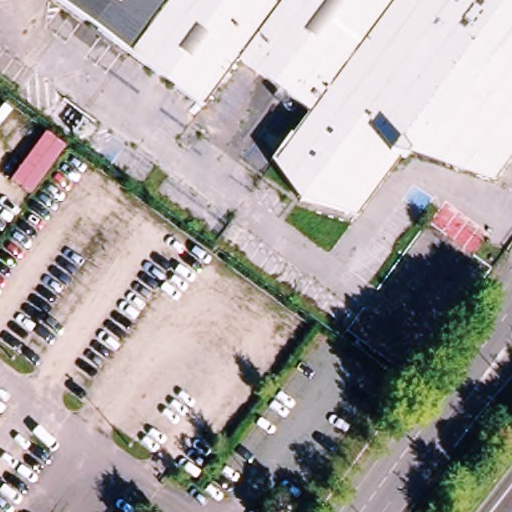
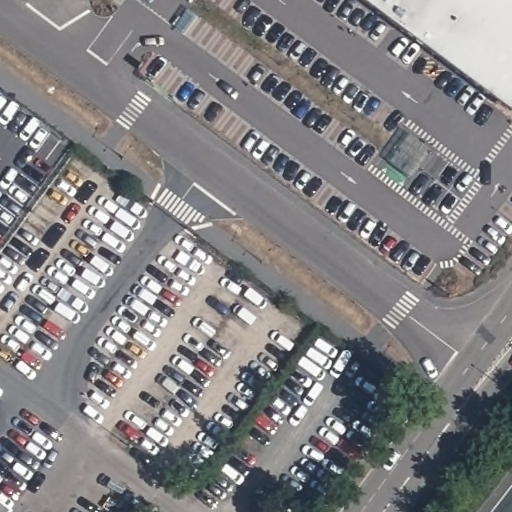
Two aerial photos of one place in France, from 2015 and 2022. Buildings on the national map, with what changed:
demolished [(65,0),(144,0),(134,13),(148,23),(129,47),(65,0)]
demolished [(148,23),(134,13),(144,0),(512,0),(512,137),(489,168),(461,158),(447,153),(443,133),(404,120),(379,153),(384,162),(373,177),(349,210),(301,196),(272,155),(291,128),(293,129),(311,106),(239,53),(203,101),(129,47),(148,23)]
new [(359,0),(512,0),(512,113),(359,0)]

